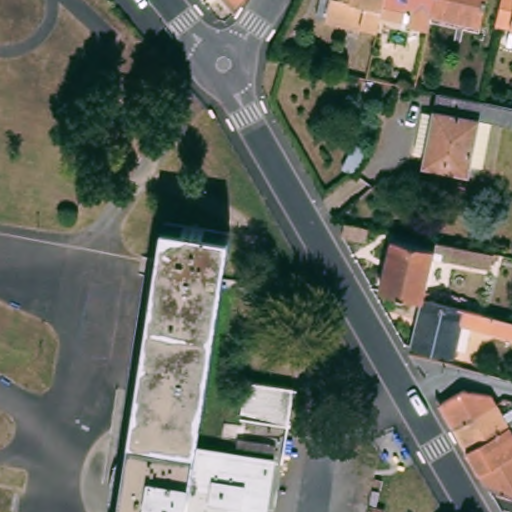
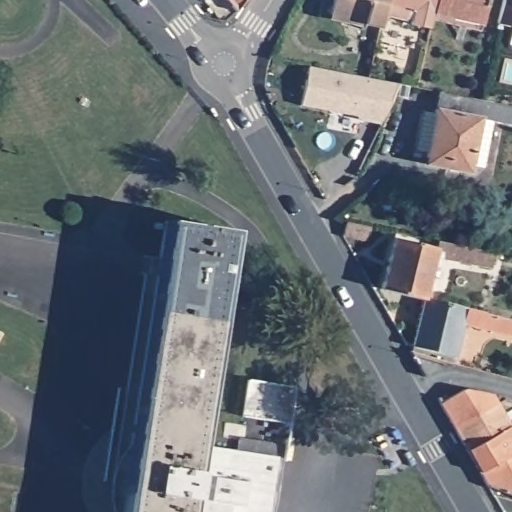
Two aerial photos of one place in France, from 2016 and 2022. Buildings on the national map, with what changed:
unchanged [(244,0),(239,8),(231,0),(244,0)]
unchanged [(330,13),(333,0),(386,0),(383,12),(381,24),(330,13)]
unchanged [(431,26),(411,21),(415,7),(408,6),(406,18),(383,12),(386,0),(437,0),(435,11),(431,26)]
unchanged [(435,11),(437,0),(488,0),(483,22),(435,11)]
new [(312,63),(402,81),(385,118),(304,101),(312,63)]
unchanged [(428,161),(428,156),(418,154),(426,114),(437,116),(442,94),(483,102),(512,108),(512,125),(507,125),(494,122),(486,170),(473,167),(472,169),(471,178),(427,170),(428,161)]
unchanged [(359,171),(346,164),(356,141),(370,148),(359,171)]
unchanged [(119,510),(117,500),(117,489),(117,480),(119,469),(122,458),(125,452),(131,444),(137,436),(170,222),(233,232),(201,446),(191,512),(120,512),(119,510)]
unchanged [(370,226),(367,243),(346,237),(347,222),(370,226)]
unchanged [(440,249),(430,296),(437,297),(436,305),(418,300),(383,292),(396,240),(440,249)]
unchanged [(449,259),(451,251),(440,249),(442,241),(501,254),(497,270),(449,259)]
unchanged [(436,305),(512,322),(512,337),(459,325),(451,358),(407,348),(418,300),(436,305)]
unchanged [(445,362),(422,375),(411,353),(445,362)]
unchanged [(300,390),(294,428),(247,419),(253,382),(300,390)]
unchanged [(458,427),(443,402),(467,388),(495,394),(500,403),(458,427)]
unchanged [(470,449),(458,427),(500,403),(510,419),(512,418),(512,457),(484,473),(470,449)]
unchanged [(272,512),(191,512),(201,446),(242,453),(245,441),(282,447),(272,512)]
unchanged [(484,473),(512,457),(512,495),(492,489),(484,473)]

